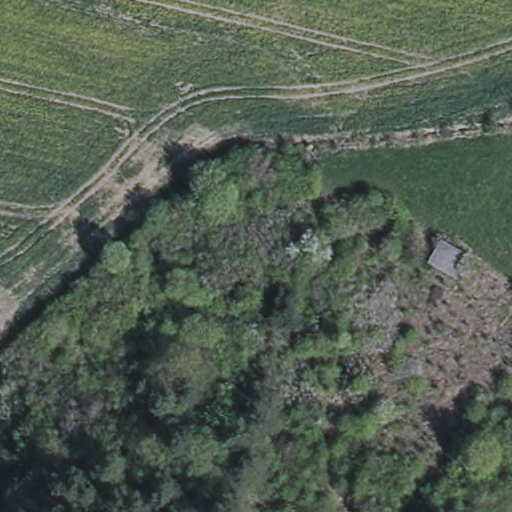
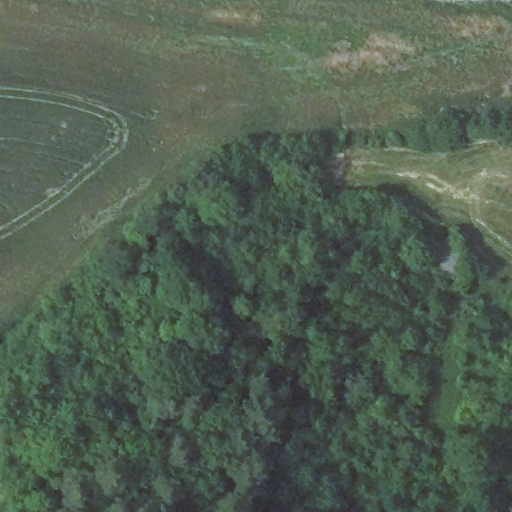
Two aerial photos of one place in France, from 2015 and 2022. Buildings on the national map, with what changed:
unchanged [(468,258),(457,282),(426,265),(440,241),(468,258)]

